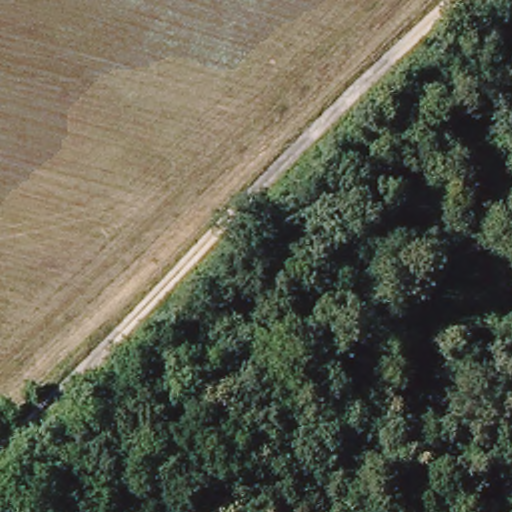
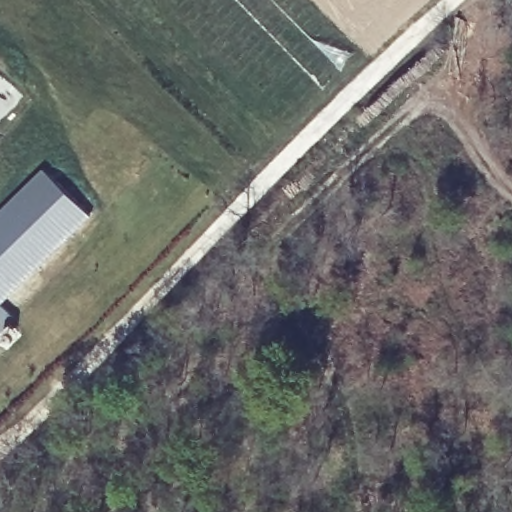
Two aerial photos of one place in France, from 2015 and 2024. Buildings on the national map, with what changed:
new [(45,168),(90,215),(1,305),(15,319),(0,333),(0,211),(45,168)]

